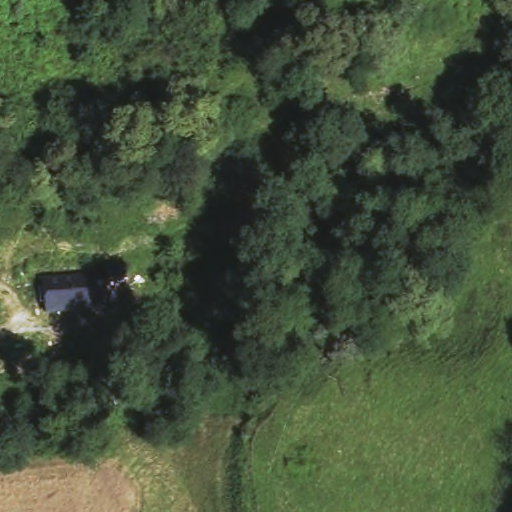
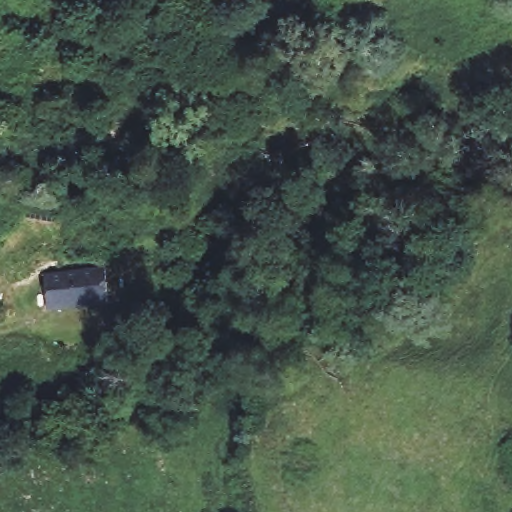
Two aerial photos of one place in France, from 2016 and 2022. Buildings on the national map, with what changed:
unchanged [(97,266),(99,305),(39,313),(34,272),(97,266)]

